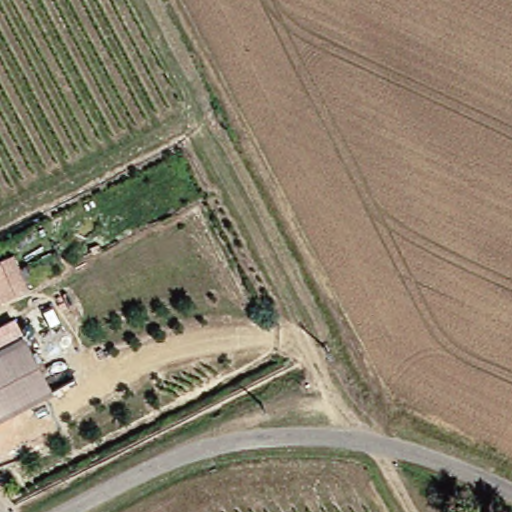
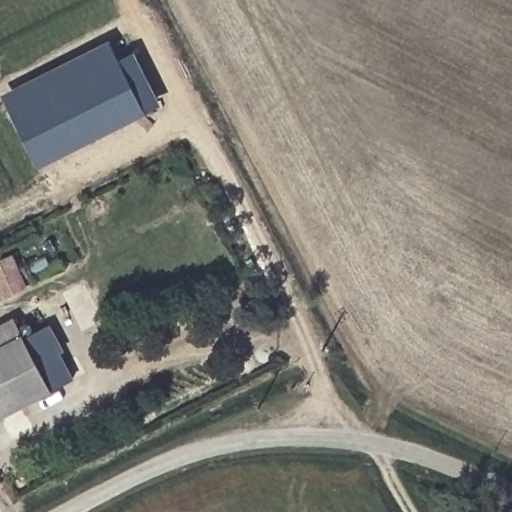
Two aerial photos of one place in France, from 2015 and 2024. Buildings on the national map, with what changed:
new [(106,39),(145,109),(39,165),(1,95),(106,39)]
new [(12,257),(25,286),(0,297),(0,263),(12,257)]
unchanged [(45,387),(0,412),(0,343),(17,333),(45,387)]

